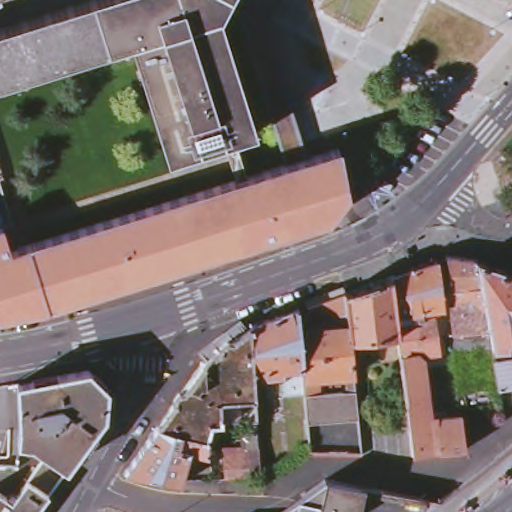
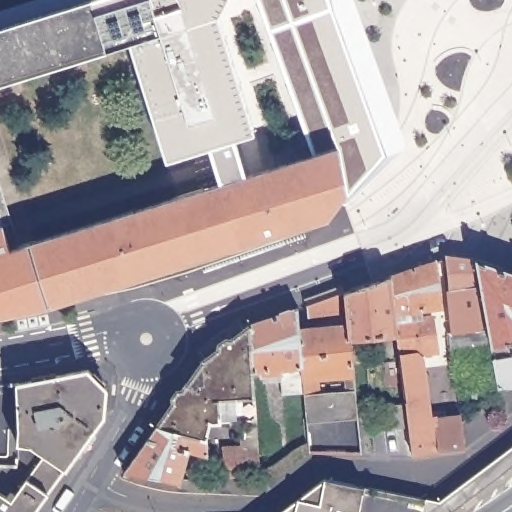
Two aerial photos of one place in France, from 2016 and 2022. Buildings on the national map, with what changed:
unchanged [(84,0),(229,0),(221,15),(257,134),(167,160),(131,42),(0,82),(0,25),(84,0)]
new [(349,192),(339,150),(315,157),(280,50),(260,0),(328,0),(329,6),(382,154),(349,192)]
unchanged [(1,254),(0,251),(0,228),(9,225),(18,249),(339,150),(349,192),(330,220),(200,265),(119,287),(0,312),(0,254),(1,254)]
unchanged [(490,350),(450,355),(447,336),(452,335),(446,260),(445,255),(473,259),(487,332),(490,350)]
unchanged [(492,358),(490,350),(487,332),(473,259),(512,271),(512,389),(498,391),(492,358)]
unchanged [(436,263),(441,307),(394,312),(390,279),(436,263)]
unchanged [(390,279),(394,312),(395,321),(397,335),(348,341),(343,294),(390,279)]
unchanged [(310,326),(308,305),(343,294),(348,341),(351,370),(345,370),(342,356),(320,357),(320,361),(310,361),(310,359),(302,358),(300,328),(310,326)]
unchanged [(298,308),(300,328),(302,358),(303,373),(306,396),(281,398),(280,368),(276,368),(278,374),(258,374),(257,368),(250,370),(247,325),(298,308)]
unchanged [(406,407),(397,335),(395,321),(433,318),(438,353),(417,355),(420,357),(427,415),(433,421),(460,417),(466,448),(445,451),(412,455),(410,430),(396,431),(393,409),(406,407)]
unchanged [(203,356),(247,325),(250,370),(253,400),(255,418),(212,421),(208,438),(157,420),(203,356)]
unchanged [(6,498),(37,455),(25,445),(13,445),(15,426),(13,383),(82,369),(101,389),(99,416),(29,512),(0,512),(0,495),(6,498)]
unchanged [(306,396),(354,393),(357,421),(307,425),(306,396)]
unchanged [(208,438),(209,455),(189,457),(182,483),(123,467),(157,420),(208,438)]
unchanged [(258,475),(225,475),(223,447),(256,446),(258,475)]
unchanged [(368,485),(357,510),(334,505),(333,512),(275,512),(322,476),(368,485)]

